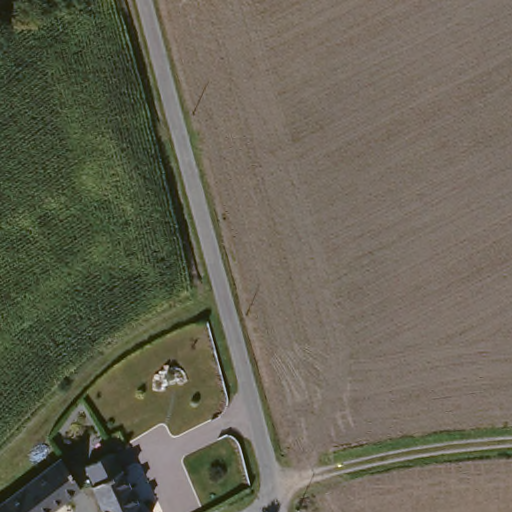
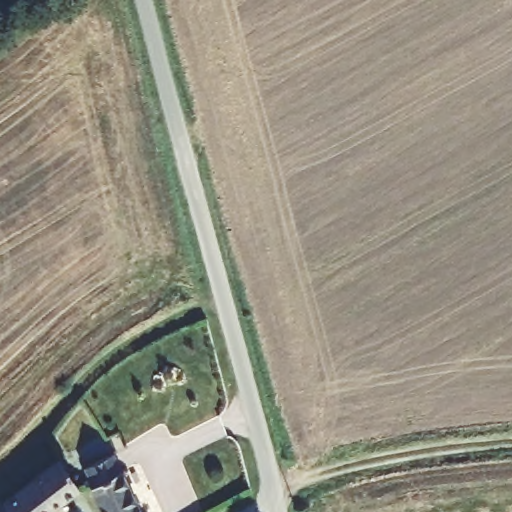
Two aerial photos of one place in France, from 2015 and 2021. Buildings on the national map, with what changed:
unchanged [(109,455),(136,510),(131,512),(98,512),(96,508),(80,472),(109,455)]
unchanged [(78,490),(48,512),(0,512),(0,503),(54,463),(59,460),(78,490)]

